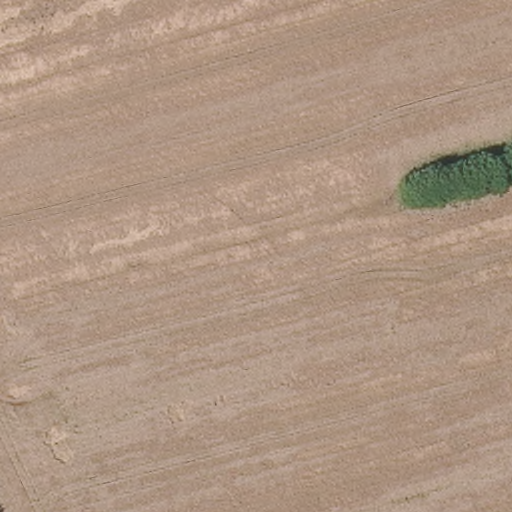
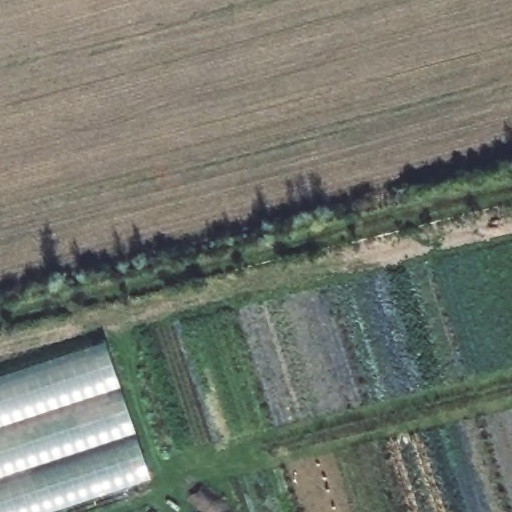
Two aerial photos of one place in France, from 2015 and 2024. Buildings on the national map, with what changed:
new [(152,480),(52,512),(0,512),(0,378),(106,343),(152,480)]

